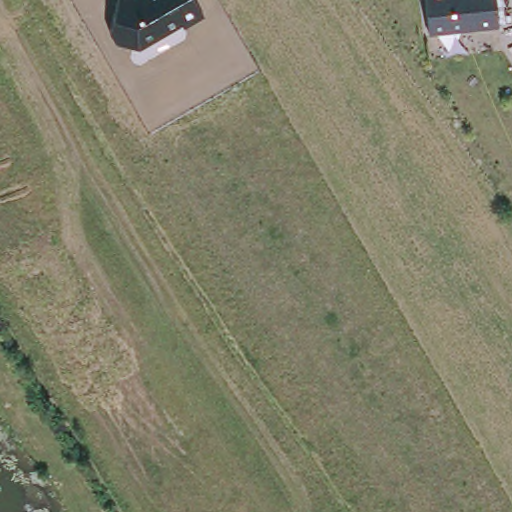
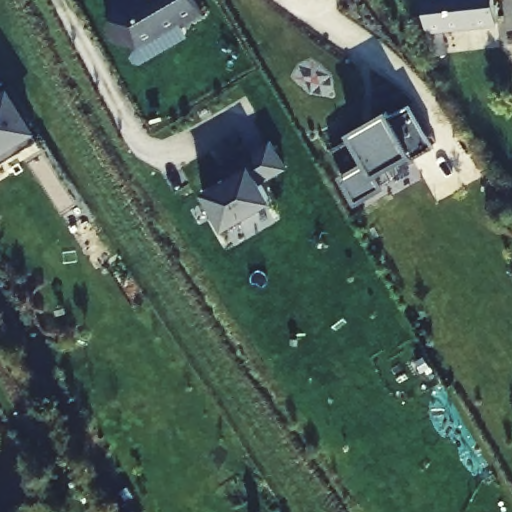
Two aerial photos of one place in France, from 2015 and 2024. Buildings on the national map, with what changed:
unchanged [(142,46),(113,40),(108,29),(116,0),(194,0),(200,11),(142,46)]
unchanged [(425,25),(423,0),(493,0),(494,21),(425,25)]
new [(31,114),(27,116),(38,135),(32,139),(30,137),(0,157),(0,88),(11,81),(31,114)]
new [(432,145),(413,158),(411,153),(388,167),(393,178),(385,183),(385,184),(357,201),(340,173),(344,171),(331,148),(351,136),(347,129),(388,107),(392,115),(409,105),(432,145)]
new [(286,165),(260,180),(270,200),(224,226),(203,191),(250,164),(245,155),(271,141),(286,165)]

